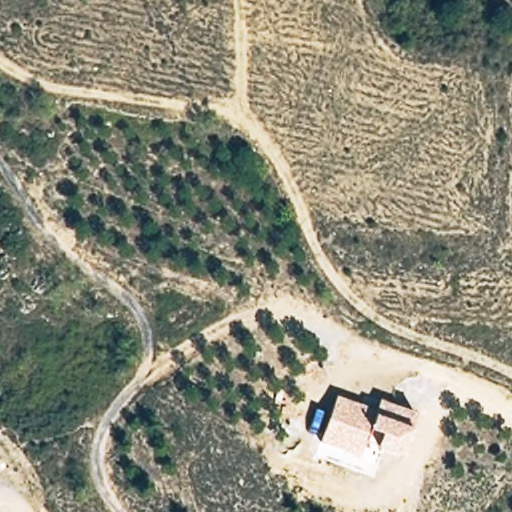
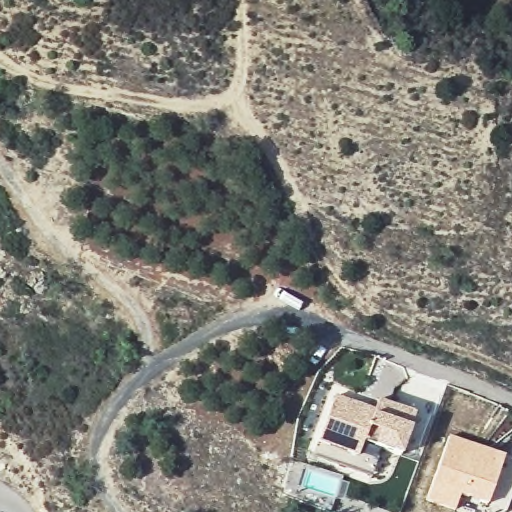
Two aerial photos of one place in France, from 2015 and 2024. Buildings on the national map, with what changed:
unchanged [(374,413),(379,403),(416,416),(401,458),(382,451),(363,444),(358,459),(319,444),(334,399),(374,413)]
new [(507,456),(512,464),(512,493),(506,509),(501,512),(454,512),(453,512),(454,508),(426,498),(449,434),(507,456)]

